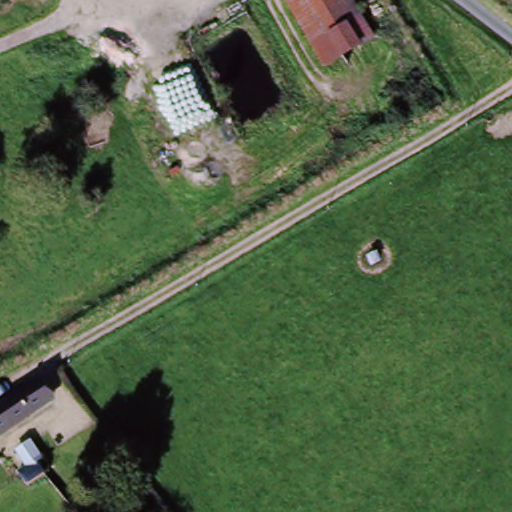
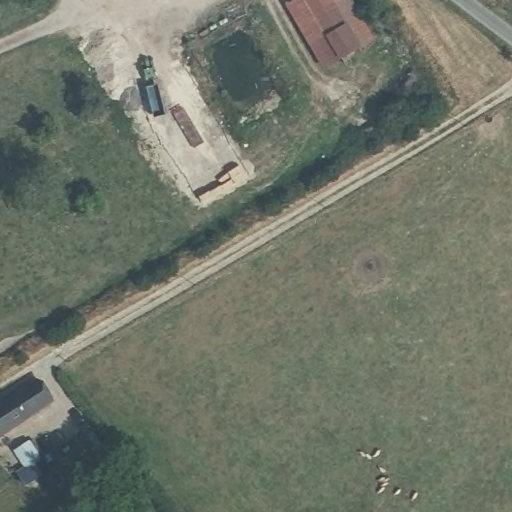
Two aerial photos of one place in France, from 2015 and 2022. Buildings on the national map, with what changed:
unchanged [(330,64),(292,0),(359,0),(379,35),(330,64)]
unchanged [(57,402),(0,439),(0,410),(43,381),(57,402)]
unchanged [(19,473),(28,466),(18,450),(30,442),(41,458),(37,461),(45,475),(28,486),(19,473)]

